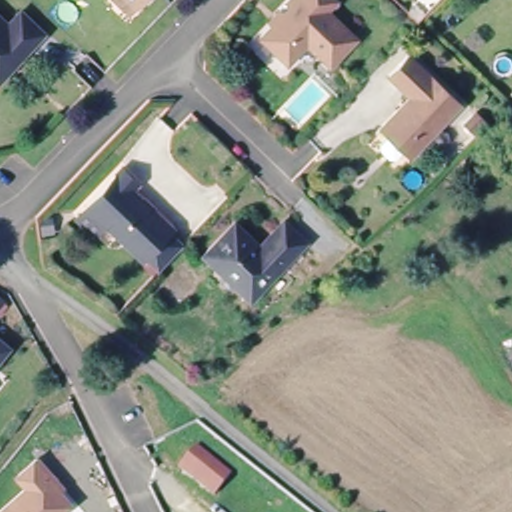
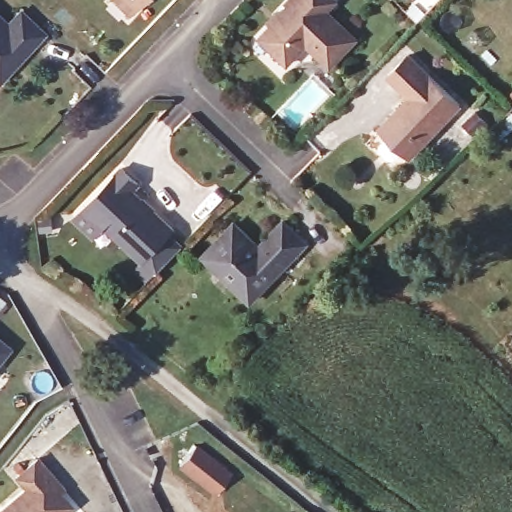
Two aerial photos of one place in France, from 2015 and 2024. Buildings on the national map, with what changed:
unchanged [(111,0),(144,0),(128,17),(111,0)]
unchanged [(306,49),(287,69),(259,42),(277,23),(274,20),(293,0),(331,0),(337,5),(327,15),(356,43),(330,71),(306,49)]
unchanged [(417,21),(407,12),(415,4),(425,13),(417,21)]
unchanged [(7,24),(20,11),(44,33),(16,62),(11,68),(0,80),(0,17),(7,24)]
unchanged [(389,163),(381,155),(380,149),(388,141),(379,133),(409,101),(388,80),(408,59),(460,109),(410,161),(403,155),(395,163),(389,163)]
unchanged [(160,267),(157,270),(145,258),(142,261),(85,206),(121,168),(138,184),(131,190),(172,230),(169,233),(181,245),(160,267)]
unchanged [(259,251),(265,244),(283,226),(306,247),(250,306),(203,260),(234,227),(259,251)]
unchanged [(9,347),(0,359),(0,340),(9,347)]
unchanged [(235,467),(217,493),(177,463),(195,438),(235,467)]
unchanged [(65,511),(64,512),(0,512),(0,510),(24,490),(14,478),(35,461),(56,485),(53,489),(66,504),(65,511)]

